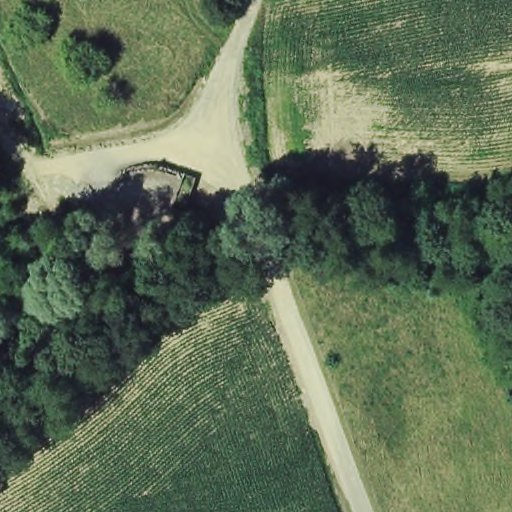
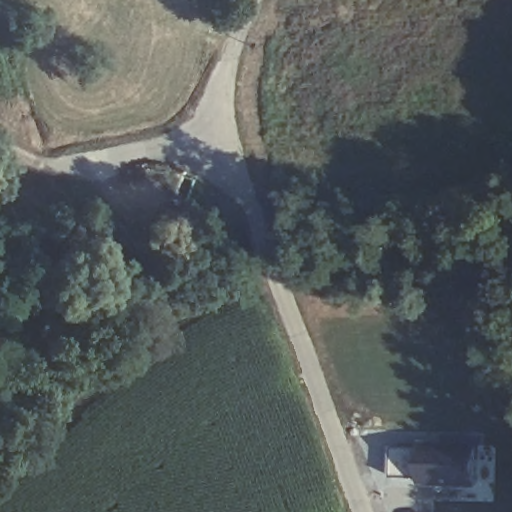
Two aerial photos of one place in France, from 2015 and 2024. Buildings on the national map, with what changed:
new [(420,481),(421,445),(422,438),(480,440),(478,486),(454,486),(452,491),(420,485),(420,481)]
new [(454,486),(478,486),(480,440),(496,443),(494,501),(459,500),(459,493),(452,491),(454,486)]
new [(392,444),(421,445),(420,481),(390,476),(392,444)]

